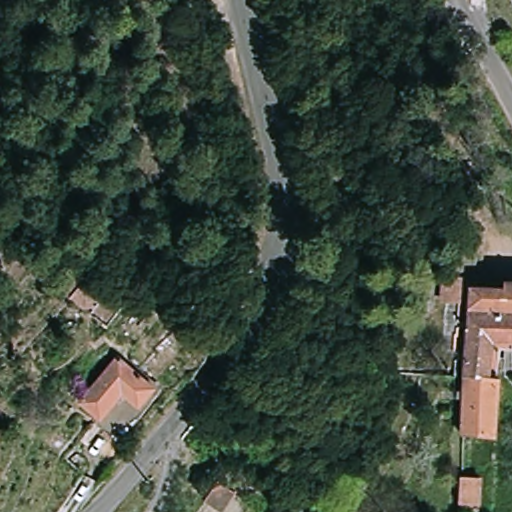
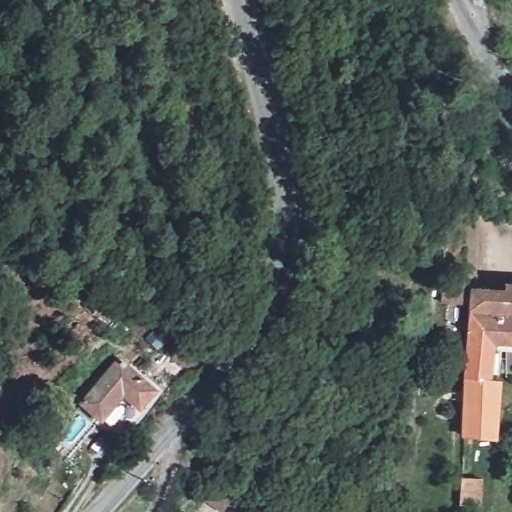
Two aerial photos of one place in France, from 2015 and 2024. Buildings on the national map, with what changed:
unchanged [(506,3),(504,0),(512,0),(512,1),(506,3)]
unchanged [(468,74),(481,96),(465,107),(454,84),(468,74)]
unchanged [(463,303),(437,302),(439,272),(465,274),(463,303)]
unchanged [(505,275),(512,275),(512,321),(502,320),(503,289),(482,288),(481,294),(472,292),(473,280),(504,284),(505,275)]
unchanged [(482,288),(503,289),(502,320),(512,321),(512,349),(497,349),(495,370),(493,381),(463,378),(472,292),(481,294),(482,288)]
unchanged [(123,357),(161,393),(124,433),(87,398),(123,357)]
unchanged [(493,381),(503,383),(504,383),(504,400),(504,408),(502,442),(499,442),(465,441),(463,378),(493,381)]
unchanged [(475,473),(475,481),(484,479),(485,507),(464,506),(462,476),(475,473)]

